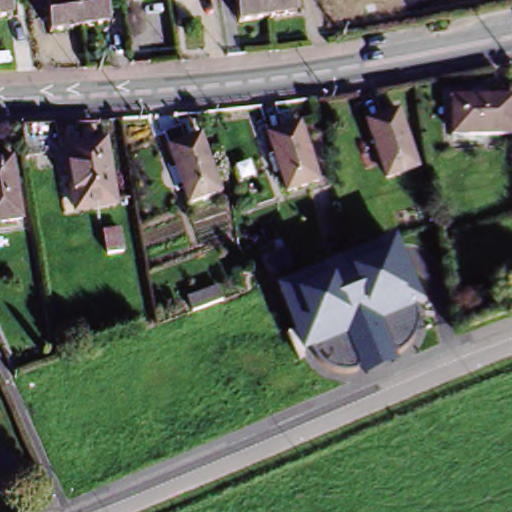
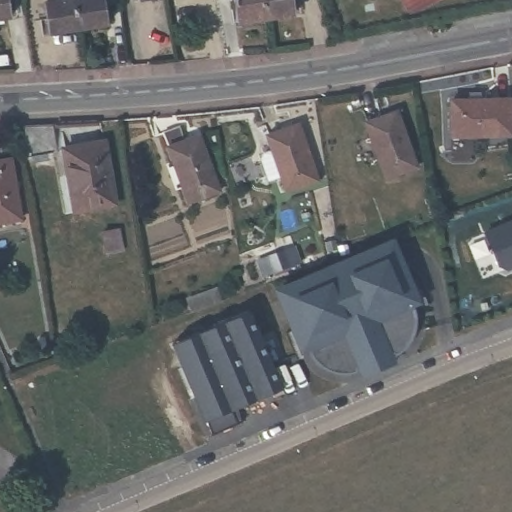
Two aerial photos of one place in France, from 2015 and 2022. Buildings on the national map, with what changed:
unchanged [(10,21),(0,23),(0,0),(7,0),(10,21)]
unchanged [(40,3),(62,0),(99,0),(102,23),(74,28),(44,32),(40,3)]
unchanged [(261,23),(232,27),(228,0),(257,0),(261,23)]
unchanged [(261,23),(257,0),(287,0),(290,18),(261,23)]
unchanged [(507,135),(447,135),(447,100),(464,100),(464,92),(477,92),(477,100),(507,99),(507,135)]
unchanged [(412,171),(382,182),(363,127),(393,116),(412,171)]
unchanged [(52,150),(20,156),(15,126),(47,124),(52,150)]
unchanged [(311,180),(281,190),(262,135),(292,124),(311,180)]
unchanged [(214,195),(183,207),(164,151),(165,151),(159,137),(174,132),(179,146),(194,140),(214,195)]
unchanged [(110,203),(70,211),(59,148),(99,141),(110,203)]
unchanged [(0,227),(0,164),(6,163),(17,224),(0,227)]
unchanged [(117,250),(102,253),(97,231),(114,228),(117,250)]
unchanged [(422,306),(414,309),(417,325),(413,339),(400,352),(395,356),(398,365),(365,378),(361,372),(342,375),(322,367),(314,358),(310,352),(300,355),(272,288),(399,242),(422,306)]
unchanged [(195,311),(190,299),(220,288),(225,300),(195,311)]
new [(285,387),(237,409),(242,420),(212,433),(205,420),(170,339),(249,306),(285,387)]

